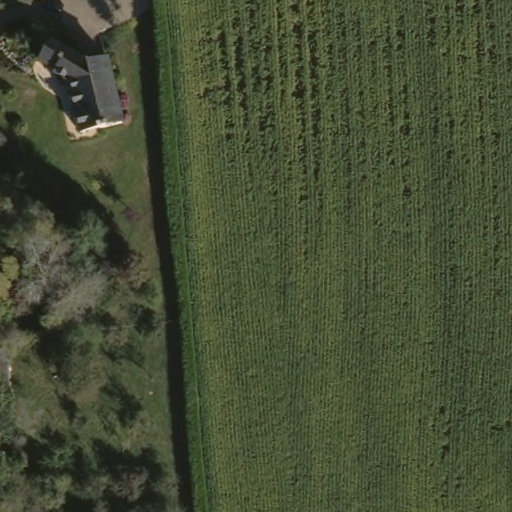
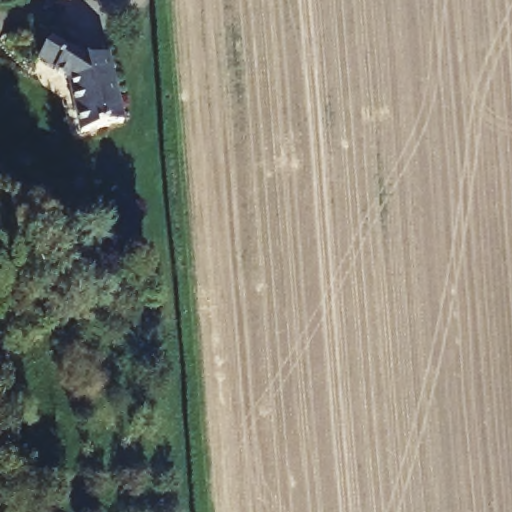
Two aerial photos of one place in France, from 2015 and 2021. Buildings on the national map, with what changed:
unchanged [(78,128),(70,82),(50,67),(52,65),(36,52),(50,31),(68,43),(89,59),(108,53),(121,118),(78,128)]

